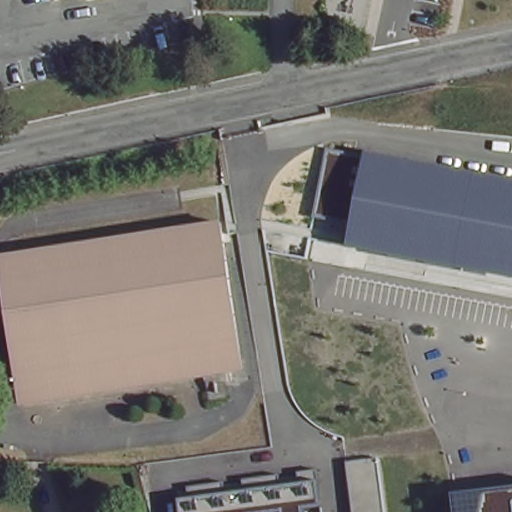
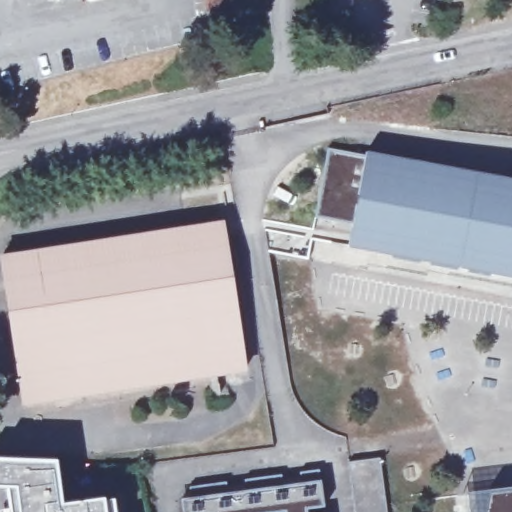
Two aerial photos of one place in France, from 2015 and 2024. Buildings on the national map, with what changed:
unchanged [(502,84),(512,71),(512,79),(506,87),(502,84)]
unchanged [(350,247),(313,241),(318,217),(330,152),(365,159),(368,152),(512,178),(512,279),(350,249),(350,247)]
unchanged [(246,366),(30,410),(0,272),(0,265),(215,221),(246,366)]
new [(54,450),(65,465),(69,496),(112,490),(116,512),(0,512),(0,447),(54,450)]
unchanged [(355,512),(349,462),(380,458),(388,512),(355,512)]
unchanged [(193,499),(192,487),(321,471),(326,512),(183,512),(182,500),(193,499)]
unchanged [(512,489),(512,512),(458,512),(456,496),(512,489)]

